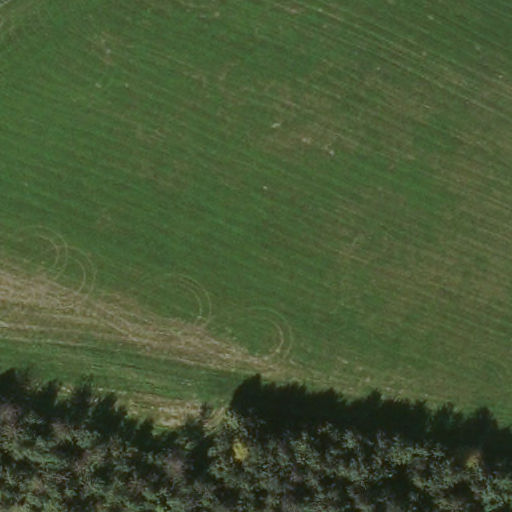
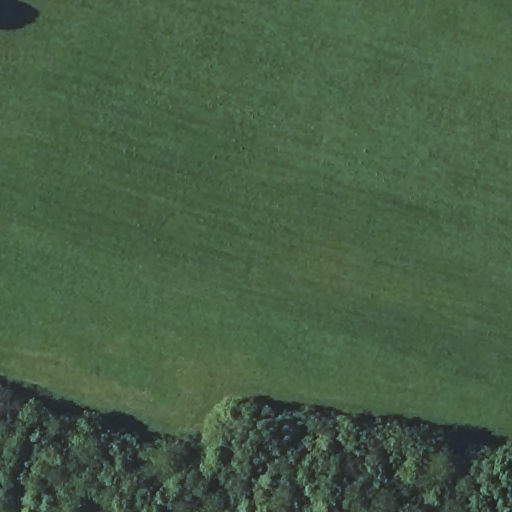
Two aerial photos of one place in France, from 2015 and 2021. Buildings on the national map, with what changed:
[]

